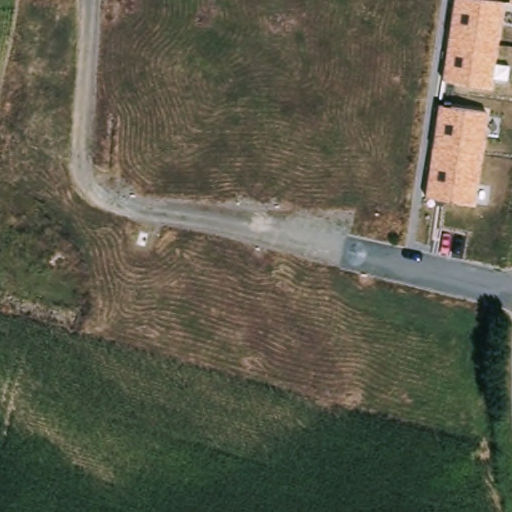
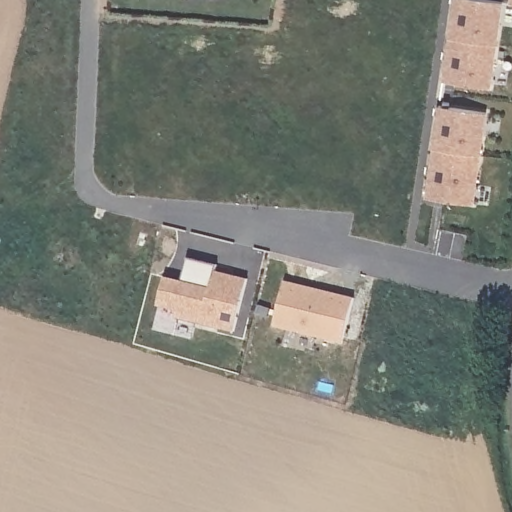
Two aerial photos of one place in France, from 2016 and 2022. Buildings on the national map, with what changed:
unchanged [(454,0),(486,0),(503,3),(492,89),(442,79),(454,0)]
unchanged [(510,0),(512,0),(512,1),(509,1),(510,0)]
unchanged [(437,106),(487,113),(473,204),(425,197),(437,106)]
new [(176,318),(178,311),(158,306),(165,277),(183,281),(188,258),(216,265),(215,270),(248,278),(234,333),(176,318)]
new [(273,326),(285,280),(354,297),(342,344),(273,326)]

